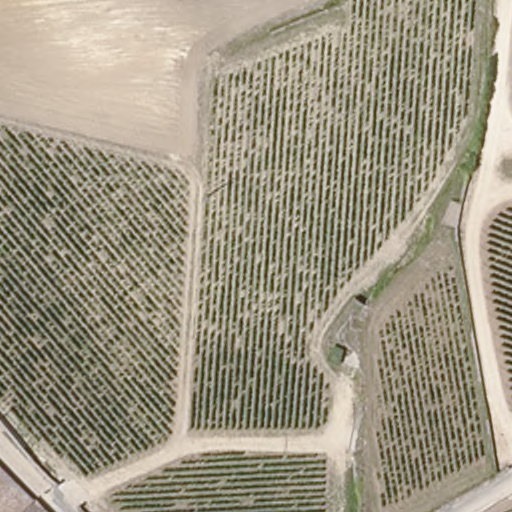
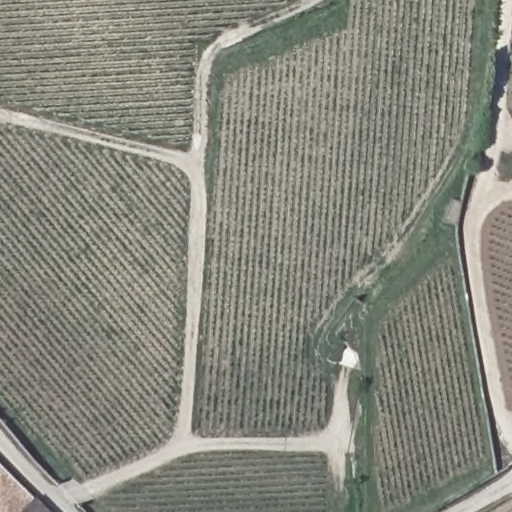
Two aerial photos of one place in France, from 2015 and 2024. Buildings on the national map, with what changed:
unchanged [(43,512),(0,512),(0,468),(43,512)]

